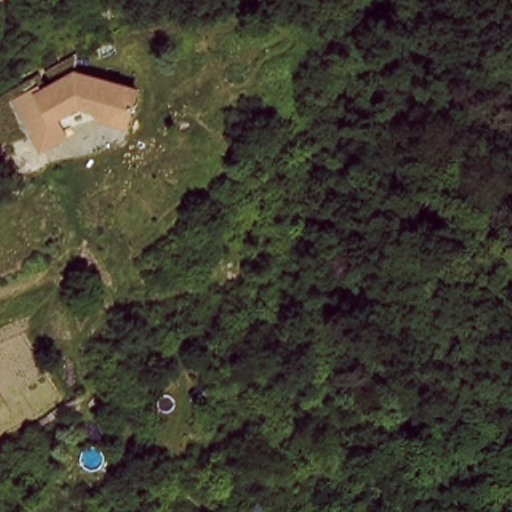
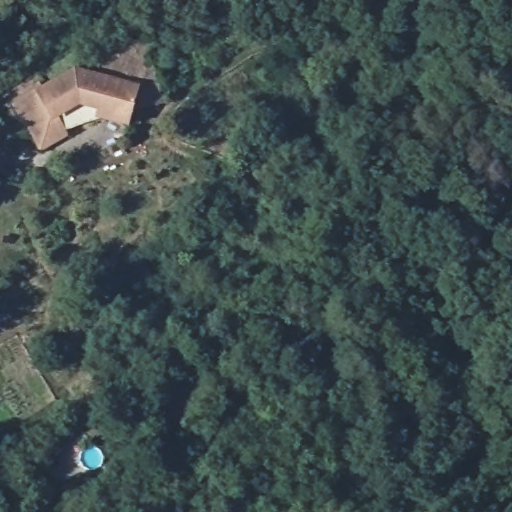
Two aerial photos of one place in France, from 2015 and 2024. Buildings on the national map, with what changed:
unchanged [(127,126),(78,109),(59,120),(71,138),(43,155),(9,101),(76,68),(140,89),(127,126)]

